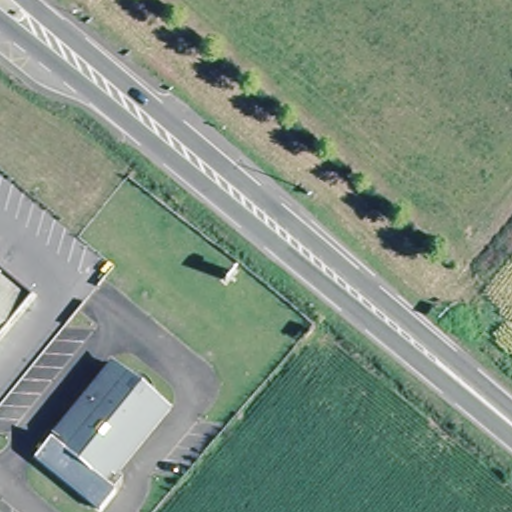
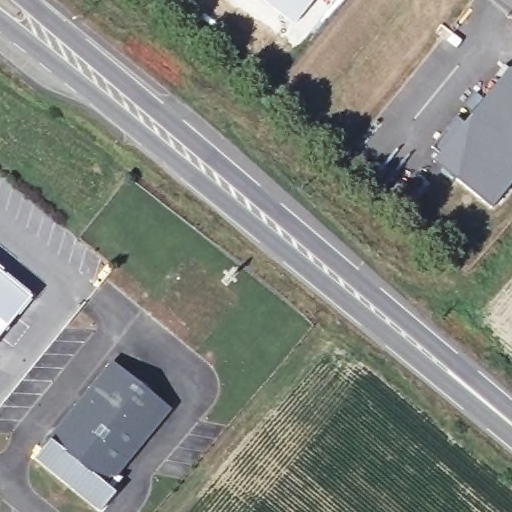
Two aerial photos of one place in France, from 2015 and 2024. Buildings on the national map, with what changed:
new [(265,0),(314,0),(295,24),(265,0)]
new [(456,117),(467,127),(470,115),(507,69),(512,70),(512,182),(490,209),(455,180),(432,162),(437,155),(430,149),(456,117)]
unchanged [(31,291),(0,329),(0,266),(31,291)]
new [(232,298),(194,345),(156,314),(195,267),(232,298)]
unchanged [(112,484),(116,487),(101,506),(35,453),(112,358),(169,404),(114,471),(119,476),(112,484)]

